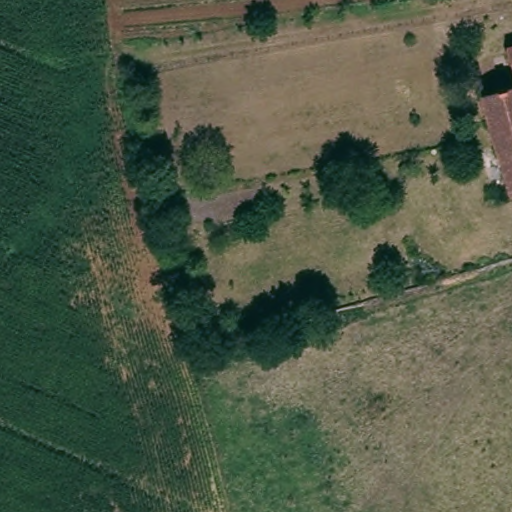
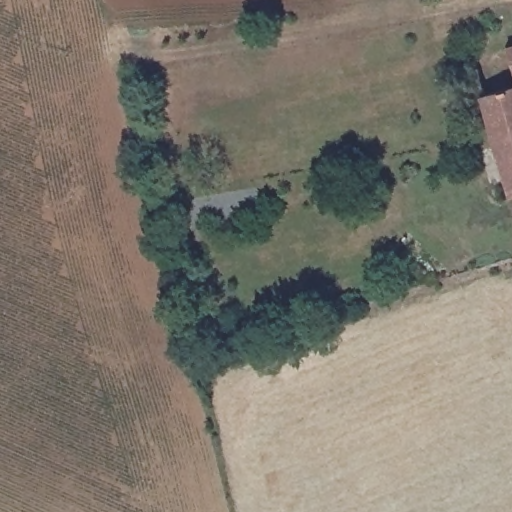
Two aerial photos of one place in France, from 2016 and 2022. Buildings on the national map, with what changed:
unchanged [(512,91),(512,189),(510,190),(482,100),(512,91)]

